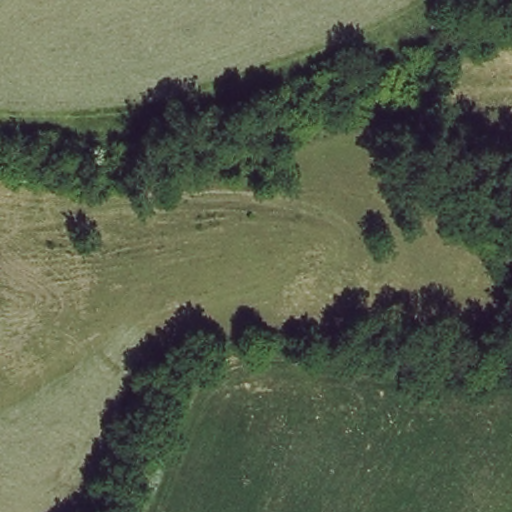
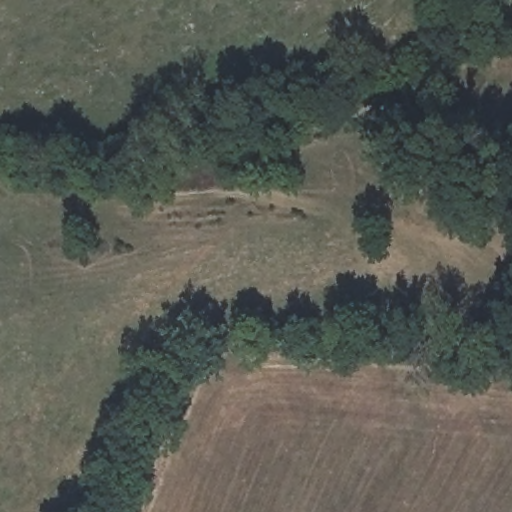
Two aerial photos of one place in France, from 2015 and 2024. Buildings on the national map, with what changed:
[]

